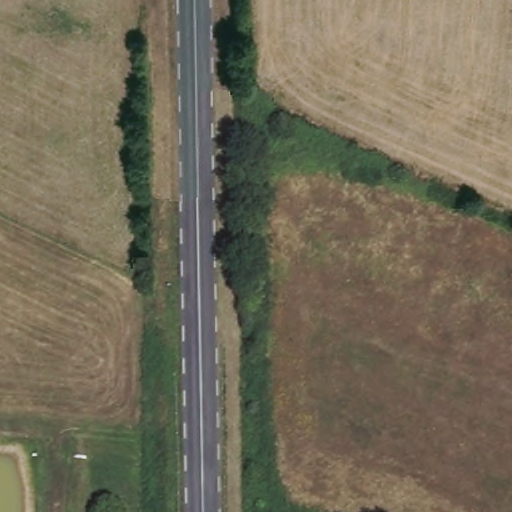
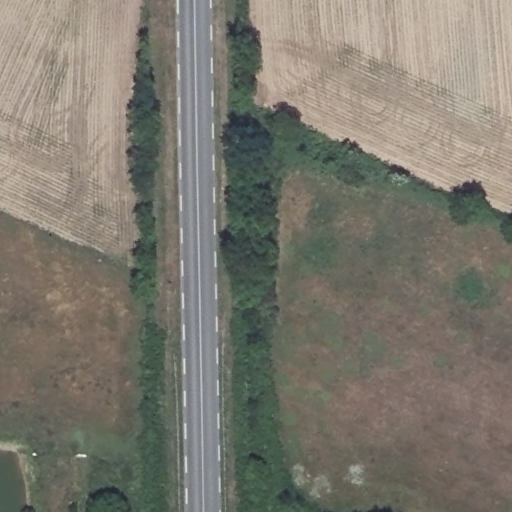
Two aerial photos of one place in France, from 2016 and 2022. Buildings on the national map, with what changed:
[]

